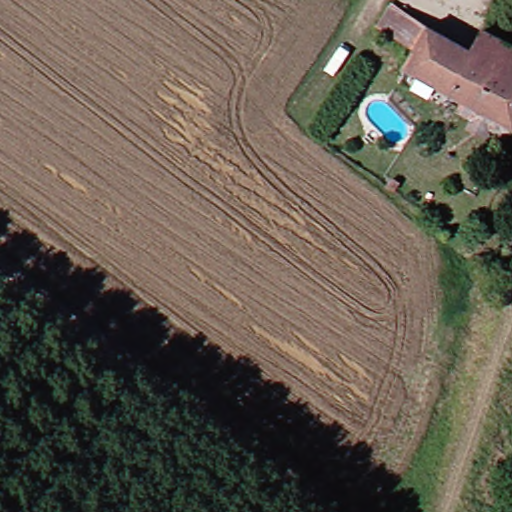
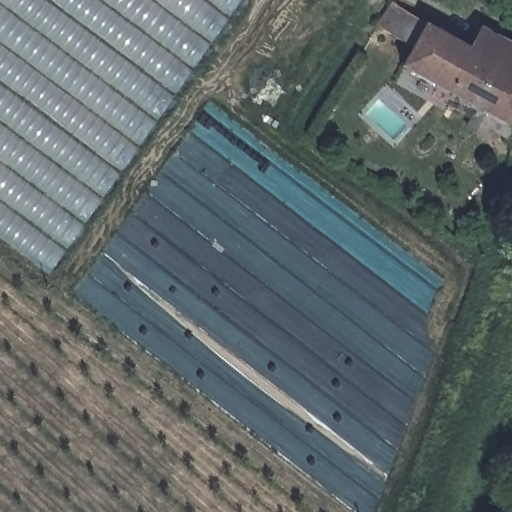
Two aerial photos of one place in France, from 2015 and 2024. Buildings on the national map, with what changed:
new [(0,239),(0,0),(241,0),(48,275),(0,239)]
unchanged [(497,126),(492,135),(474,123),(478,116),(462,106),(469,95),(411,62),(420,46),(381,25),(395,2),(476,48),(486,30),(512,43),(512,135),(497,126)]

